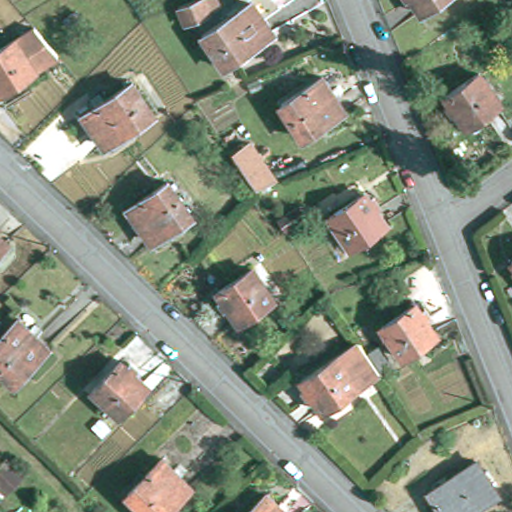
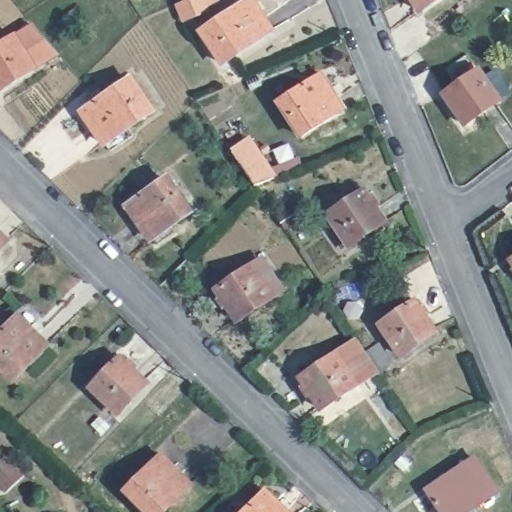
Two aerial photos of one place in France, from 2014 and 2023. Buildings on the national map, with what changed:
unchanged [(184,21),(177,6),(192,0),(202,0),(207,11),(184,21)]
unchanged [(412,0),(445,0),(422,15),(412,0)]
unchanged [(277,33),(228,64),(210,33),(257,3),(277,33)]
unchanged [(0,45),(33,23),(57,52),(0,88),(0,45)]
unchanged [(499,104),(463,126),(445,96),(480,73),(499,104)]
unchanged [(344,113),(303,139),(282,104),(322,77),(344,113)]
unchanged [(154,111),(107,141),(88,109),(135,80),(154,111)]
unchanged [(231,148),(251,134),(276,173),(253,183),(231,148)]
unchanged [(142,219),(134,204),(174,180),(195,213),(157,237),(145,218),(142,219)]
unchanged [(388,222),(353,245),(335,216),(370,194),(388,222)]
unchanged [(0,251),(0,233),(9,241),(0,251)]
unchanged [(254,263),(273,294),(238,316),(220,285),(254,263)]
unchanged [(415,306),(433,336),(399,358),(381,328),(415,306)]
unchanged [(32,332),(47,347),(17,379),(0,362),(0,339),(22,316),(33,328),(32,332)]
unchanged [(355,347),(360,355),(363,360),(375,352),(388,371),(376,379),(375,377),(352,392),(318,414),(300,382),(334,361),(355,347)]
unchanged [(152,387),(124,416),(97,390),(127,362),(152,387)]
unchanged [(499,492),(468,512),(444,512),(430,491),(478,460),(499,492)]
unchanged [(190,492),(170,512),(147,512),(131,496),(163,462),(190,492)]
unchanged [(280,500),(277,502),(287,512),(247,512),(269,490),(280,500)]

